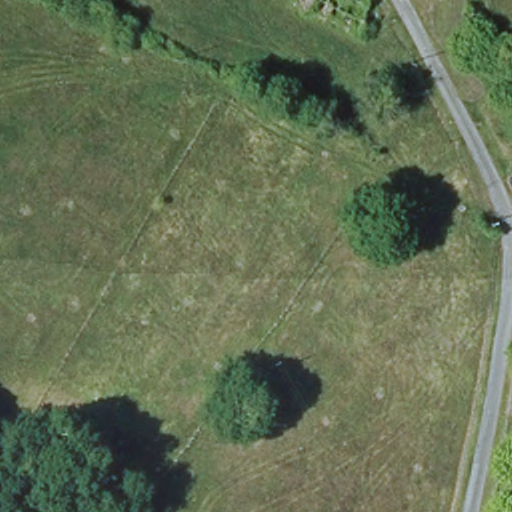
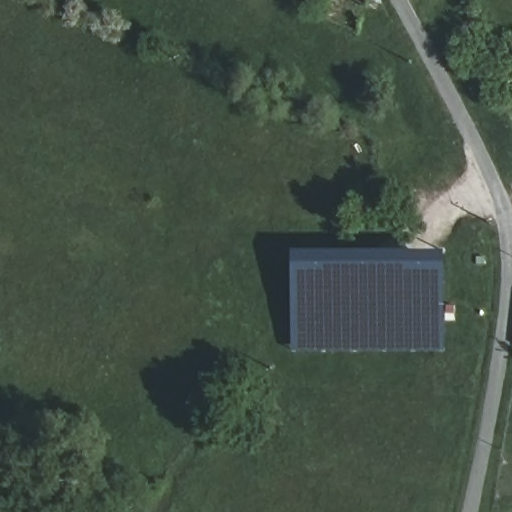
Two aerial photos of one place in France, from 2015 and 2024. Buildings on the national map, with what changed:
demolished [(292,7),(294,0),(368,0),(354,37),(292,7)]
new [(445,250),(445,350),(293,351),(292,250),(445,250)]

